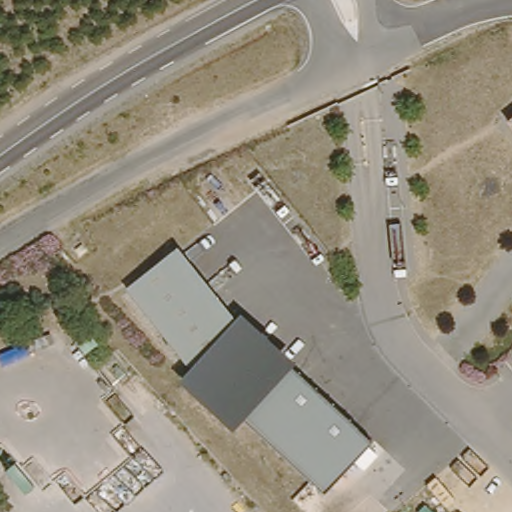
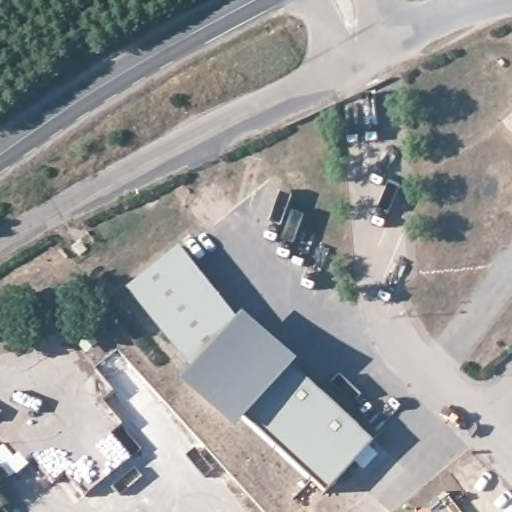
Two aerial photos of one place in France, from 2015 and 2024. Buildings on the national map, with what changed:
unchanged [(245,420),(235,430),(183,376),(192,368),(128,287),(154,269),(185,246),(241,314),(295,363),(374,440),(328,491),(245,420)]

